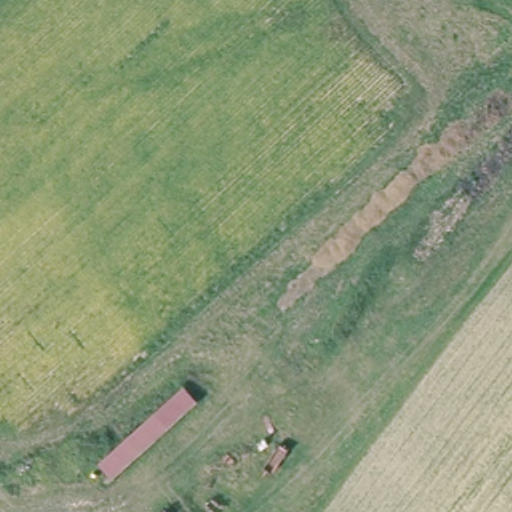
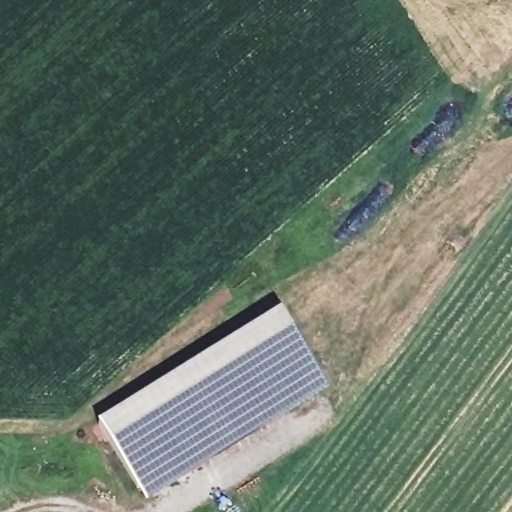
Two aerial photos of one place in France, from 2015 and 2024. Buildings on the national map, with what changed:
new [(148,504),(111,444),(98,425),(280,313),(292,334),(329,392),(148,504)]

